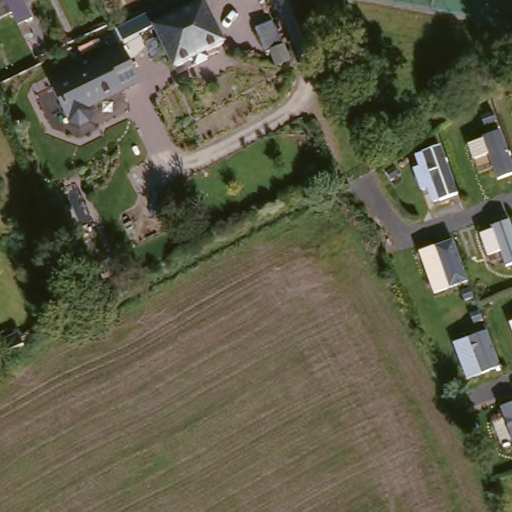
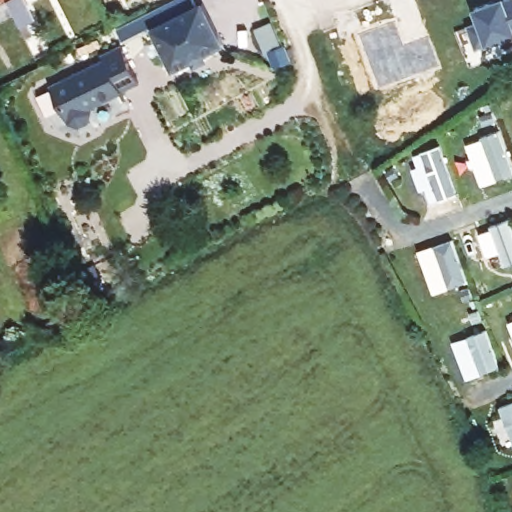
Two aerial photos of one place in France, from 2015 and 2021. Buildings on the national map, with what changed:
unchanged [(24,21),(10,27),(3,13),(0,7),(0,0),(14,0),(24,21)]
new [(479,18),(476,8),(495,0),(512,0),(512,37),(488,45),(476,49),(468,27),(479,18)]
unchanged [(146,42),(160,36),(156,29),(205,4),(224,45),(176,69),(169,54),(155,60),(146,42)]
unchanged [(0,14),(0,7),(3,13),(0,14)]
unchanged [(257,46),(256,45),(249,22),(266,16),(272,37),(273,41),(276,41),(283,61),(272,64),(264,44),(257,46)]
unchanged [(132,80),(114,89),(115,90),(81,105),(84,110),(81,119),(71,123),(62,120),(45,83),(98,58),(96,53),(115,44),(132,80)]
unchanged [(64,299),(36,315),(0,245),(0,237),(29,225),(64,299)]
unchanged [(16,344),(3,351),(0,352),(0,337),(11,333),(16,344)]

